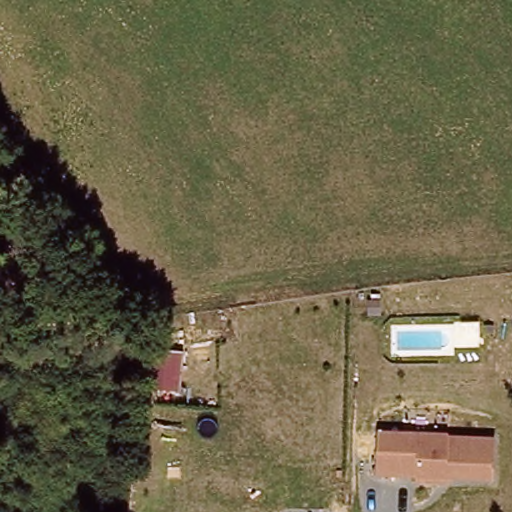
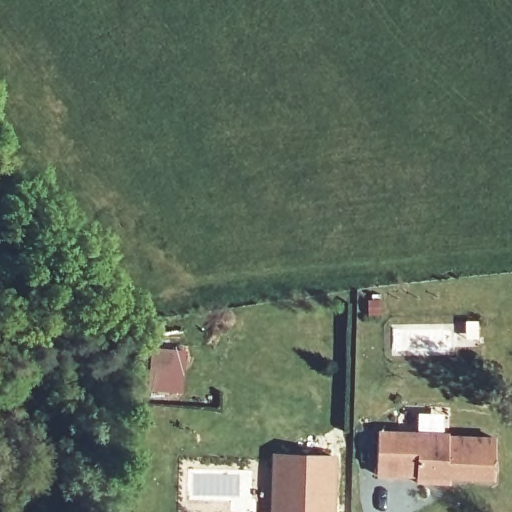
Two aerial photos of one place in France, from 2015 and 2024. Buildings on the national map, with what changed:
new [(150,350),(165,350),(161,391),(147,390),(150,350)]
unchanged [(375,471),(376,427),(447,430),(447,433),(494,435),(493,473),(437,472),(433,476),(415,477),(415,472),(375,471)]
new [(335,512),(271,512),(272,453),(337,456),(335,512)]

